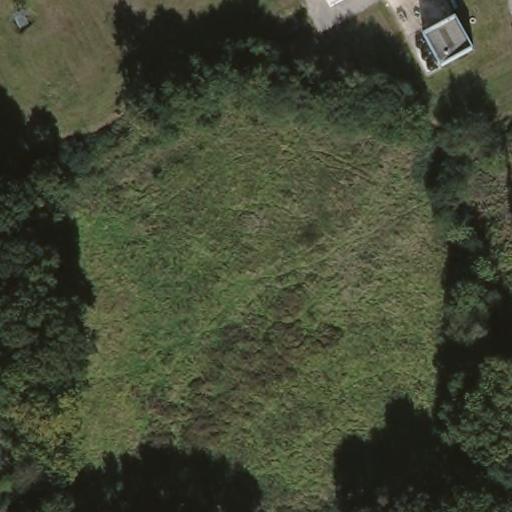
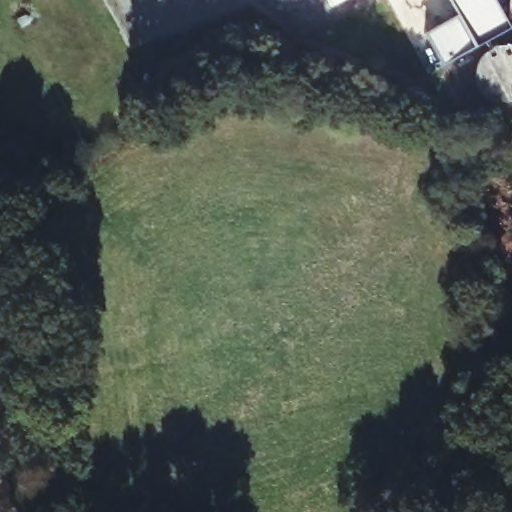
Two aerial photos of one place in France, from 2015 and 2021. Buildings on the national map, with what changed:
unchanged [(331,6),(328,0),(342,0),(331,6)]
new [(458,18),(448,0),(492,0),(510,32),(475,51),(458,18)]
unchanged [(475,51),(444,69),(426,36),(458,18),(475,51)]

